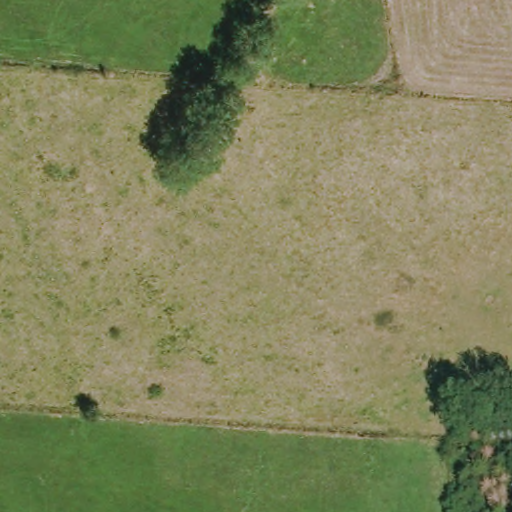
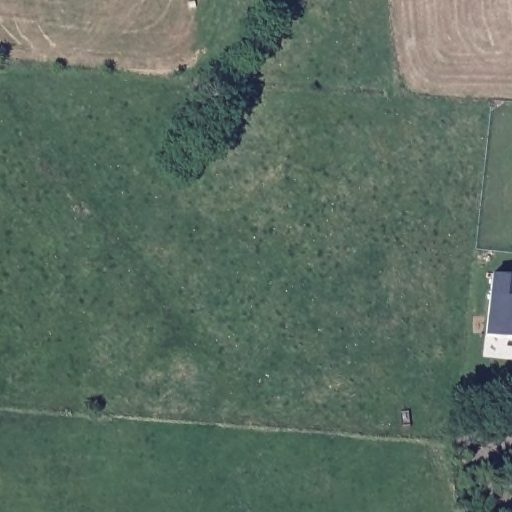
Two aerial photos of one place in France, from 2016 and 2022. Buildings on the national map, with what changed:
new [(485,335),(491,273),(512,276),(512,338),(485,335)]

